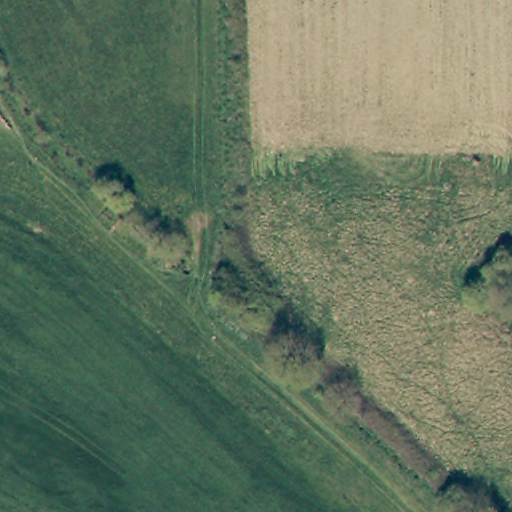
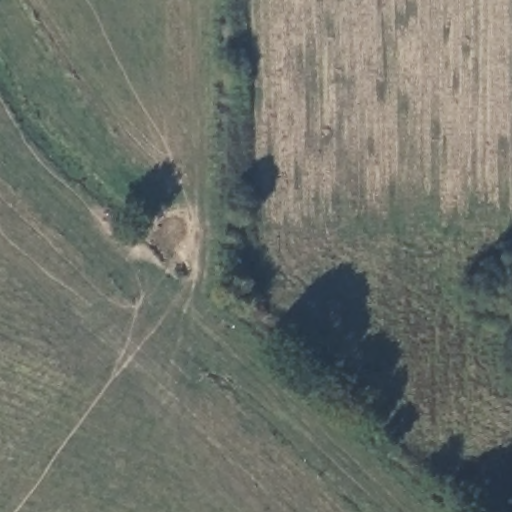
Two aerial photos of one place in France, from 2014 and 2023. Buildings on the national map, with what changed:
[]

